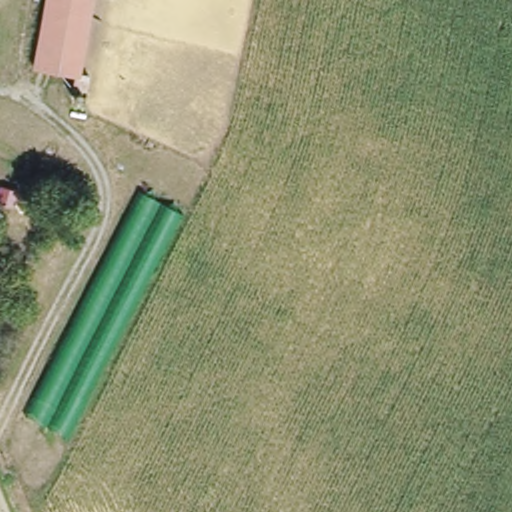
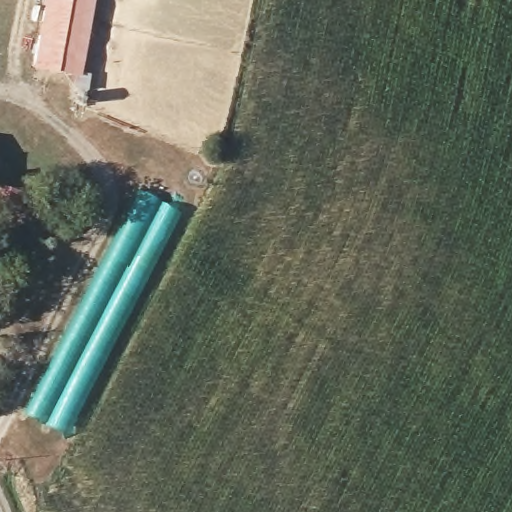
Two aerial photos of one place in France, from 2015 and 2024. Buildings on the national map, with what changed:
unchanged [(78,74),(31,65),(43,0),(90,0),(78,74)]
unchanged [(182,211),(67,435),(26,414),(139,187),(182,211)]

